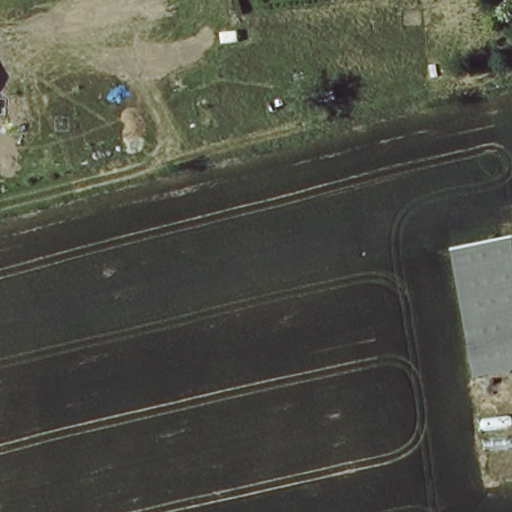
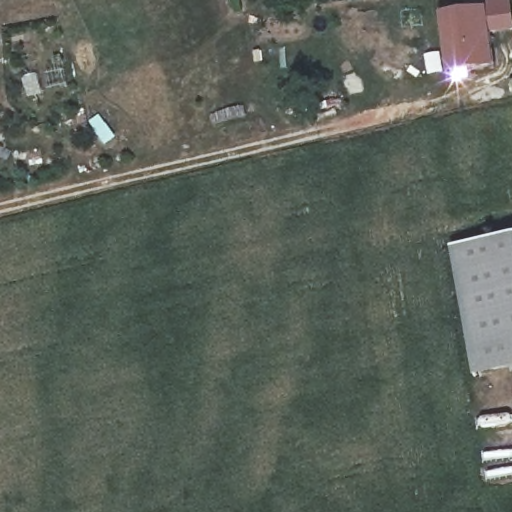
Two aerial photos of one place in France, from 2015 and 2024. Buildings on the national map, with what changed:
new [(473,10),(472,1),(481,0),(512,0),(512,2),(512,31),(490,36),(495,69),(448,75),(439,15),(473,10)]
unchanged [(442,247),(512,235),(512,368),(466,377),(442,247)]

